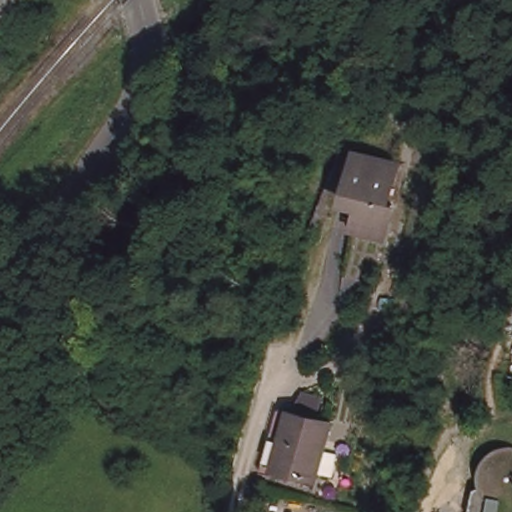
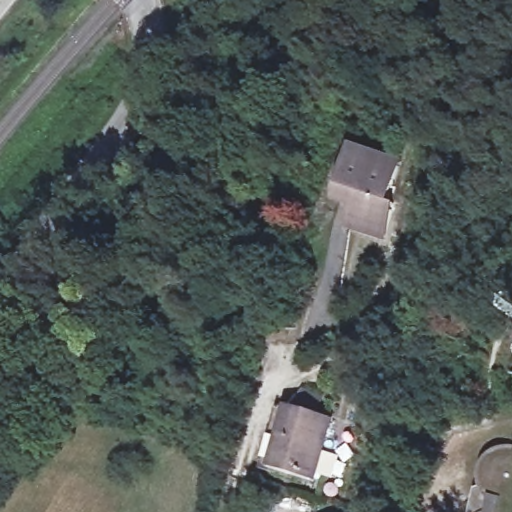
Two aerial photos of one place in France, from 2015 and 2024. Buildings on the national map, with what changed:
unchanged [(389,197),(394,199),(385,232),(354,224),(361,197),(344,192),(357,146),(399,159),(389,197)]
unchanged [(320,480),(278,467),(269,465),(286,407),(295,410),(337,422),(320,480)]

